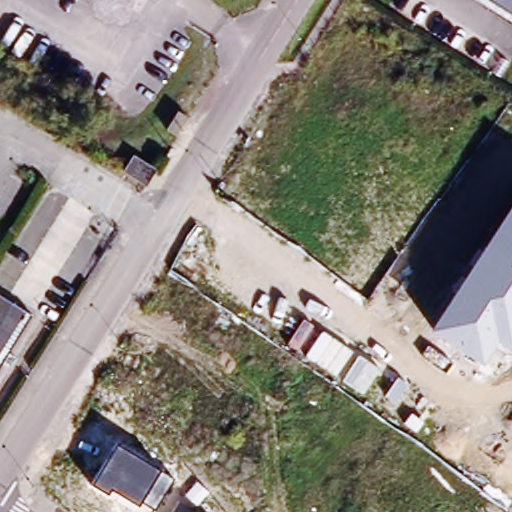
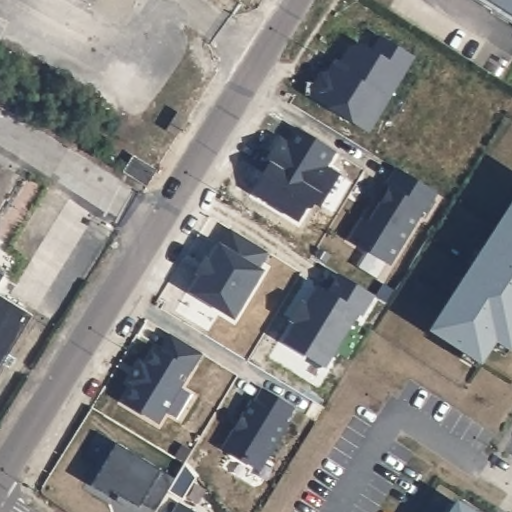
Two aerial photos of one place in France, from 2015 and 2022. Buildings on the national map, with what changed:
unchanged [(357,0),(367,0),(364,4),(362,4),(357,0)]
unchanged [(486,0),(512,0),(512,17),(486,0)]
new [(314,88),(323,75),(329,74),(334,66),(346,73),(362,45),(376,54),(384,39),(414,56),(368,131),(314,96),(314,88)]
unchanged [(178,142),(175,147),(166,140),(177,123),(186,129),(178,142)]
new [(318,222),(312,220),(310,225),(306,222),(296,240),(282,231),(280,222),(272,225),(254,214),(264,197),(261,196),(264,192),(256,186),(265,171),(269,174),(279,158),(285,162),(294,147),(332,170),(323,186),(326,188),(336,194),(318,222)]
new [(146,182),(123,168),(133,153),(155,166),(146,182)]
new [(368,224),(389,190),(401,170),(437,193),(426,212),(424,210),(391,265),(354,242),(366,222),(368,224)]
unchanged [(511,353),(493,343),(480,365),(429,331),(512,202),(512,351),(511,353)]
new [(192,292),(221,246),(263,271),(235,318),(192,292)]
new [(319,289),(330,295),(341,275),(374,295),(362,315),(359,312),(327,366),(287,342),(319,289)]
unchanged [(2,363),(0,365),(0,295),(32,315),(9,352),(17,357),(10,368),(2,363)]
new [(134,381),(128,378),(139,361),(144,364),(155,346),(159,349),(170,331),(200,349),(157,420),(123,400),(134,381)]
new [(295,410),(287,423),(289,425),(260,470),(260,471),(223,449),(252,400),(255,401),(262,388),(295,410)]
unchanged [(160,469),(174,477),(154,510),(142,501),(138,506),(110,490),(107,495),(92,485),(117,444),(160,469)]
new [(457,502),(473,512),(451,512),(457,502)]
unchanged [(178,505),(190,512),(174,512),(178,505)]

